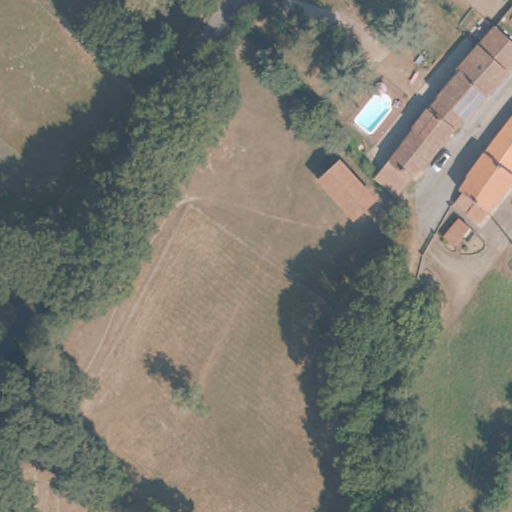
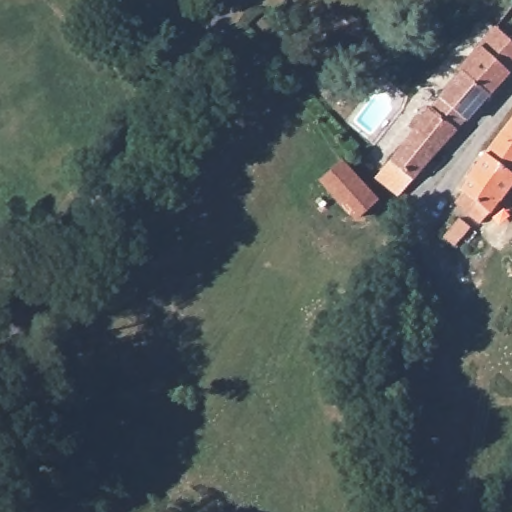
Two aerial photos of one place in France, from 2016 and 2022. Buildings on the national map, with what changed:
unchanged [(490,92),(415,186),(406,197),(384,180),(433,110),(462,73),(463,72),(460,70),(486,40),(495,29),(498,25),(512,38),(512,65),(490,92)]
unchanged [(490,154),(512,119),(512,166),(490,154)]
unchanged [(512,166),(512,182),(491,217),(462,202),(490,154),(512,166)]
unchanged [(360,176),(377,192),(361,214),(327,182),(343,161),(360,176)]
unchanged [(476,228),(470,241),(457,234),(463,222),(476,228)]

